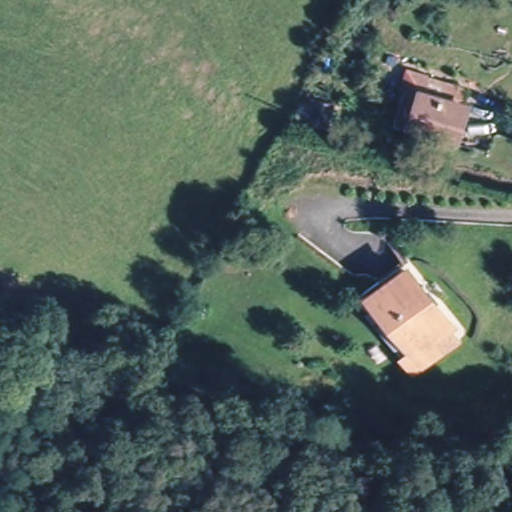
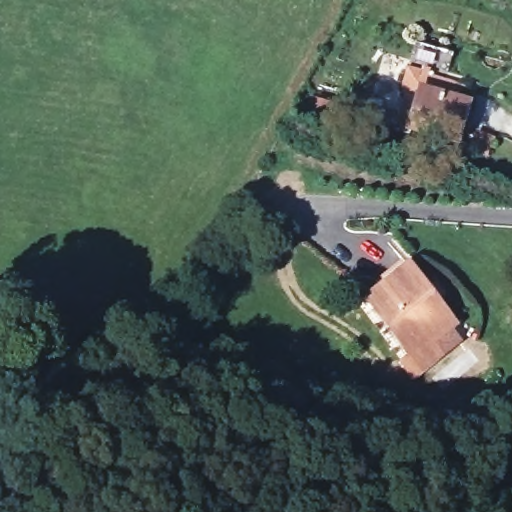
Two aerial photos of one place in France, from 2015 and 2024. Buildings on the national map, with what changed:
unchanged [(418,128),(417,135),(398,130),(409,86),(413,70),(462,81),(457,98),(468,100),(459,138),(418,128)]
unchanged [(383,311),(373,299),(390,285),(386,279),(406,261),(412,268),(460,327),(440,346),(451,358),(425,379),(412,364),(375,320),(383,311)]

